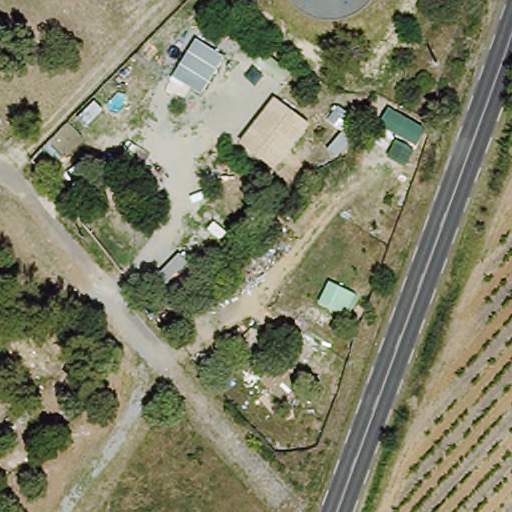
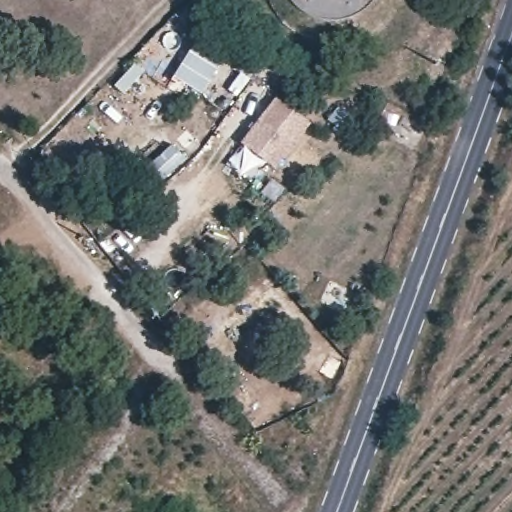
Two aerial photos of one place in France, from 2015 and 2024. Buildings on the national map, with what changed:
unchanged [(225,56),(202,95),(172,78),(196,39),(225,56)]
unchanged [(310,124),(274,171),(240,143),(275,96),(310,124)]

